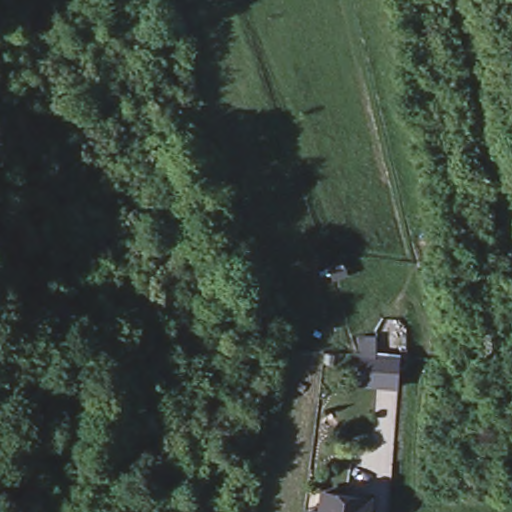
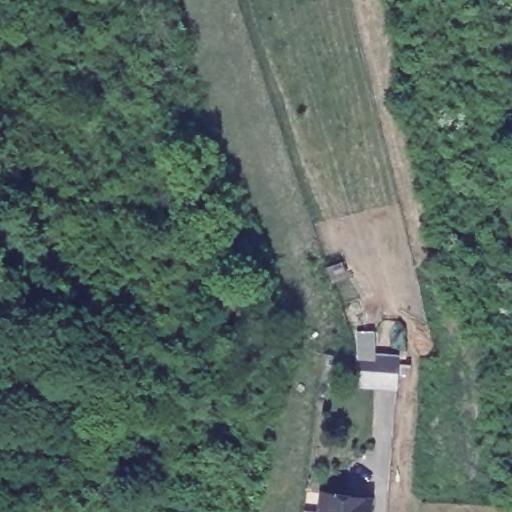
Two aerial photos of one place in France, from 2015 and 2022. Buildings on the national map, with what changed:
unchanged [(372,338),(369,391),(352,389),(352,338),(372,338)]
unchanged [(369,497),(367,512),(318,512),(320,492),(369,497)]

